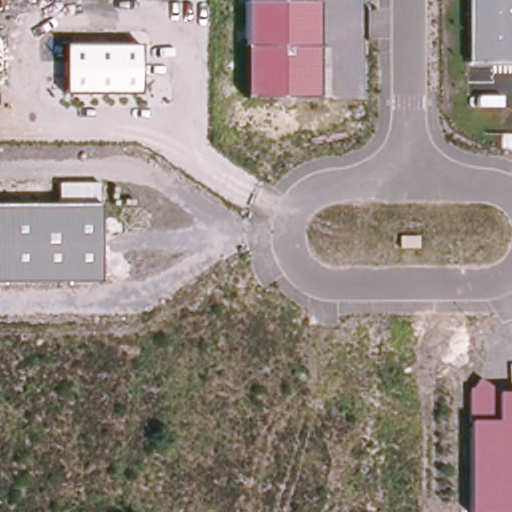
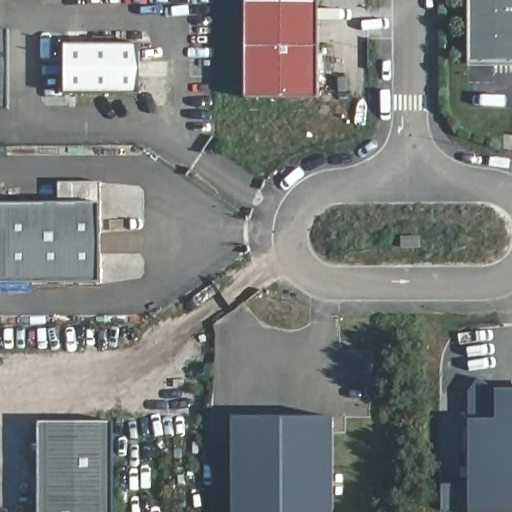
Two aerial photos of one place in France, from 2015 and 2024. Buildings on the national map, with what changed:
unchanged [(469,0),(512,0),(512,63),(468,65),(469,0)]
unchanged [(318,96),(244,97),(246,1),(318,1),(318,96)]
new [(0,109),(0,29),(9,29),(9,108),(0,109)]
unchanged [(140,93),(64,94),(65,46),(140,45),(140,93)]
unchanged [(98,204),(98,281),(0,282),(0,204),(57,204),(58,183),(99,182),(98,204)]
unchanged [(468,388),(473,388),(479,377),(493,388),(500,388),(499,392),(512,392),(512,512),(470,512),(468,421),(468,388)]
new [(233,512),(233,417),(332,417),(333,512),(233,512)]
new [(113,421),(114,512),(40,512),(40,421),(113,421)]

